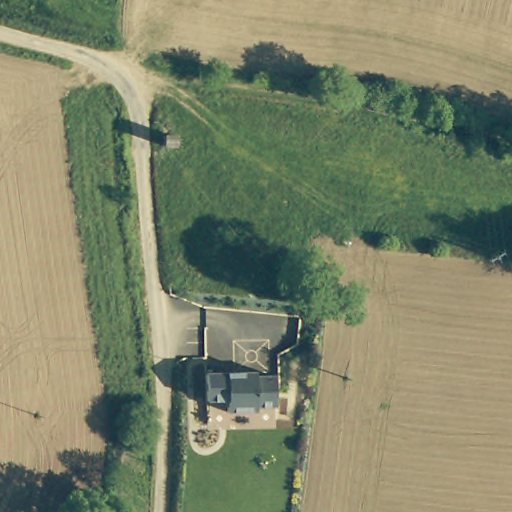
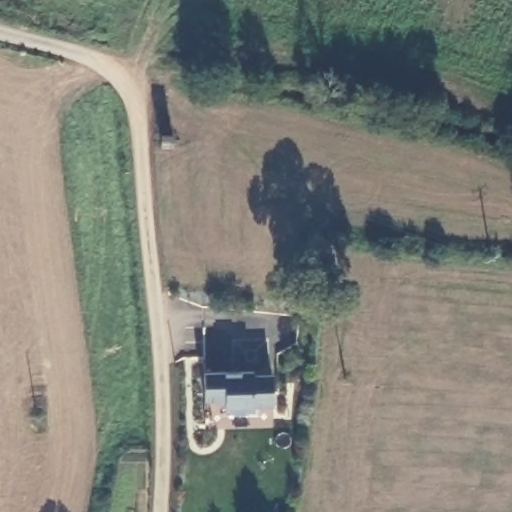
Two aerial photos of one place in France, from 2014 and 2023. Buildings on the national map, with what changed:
unchanged [(246,377),(246,382),(264,381),(265,412),(246,413),(247,417),(217,417),(217,412),(211,406),(197,406),(197,379),(246,377)]

